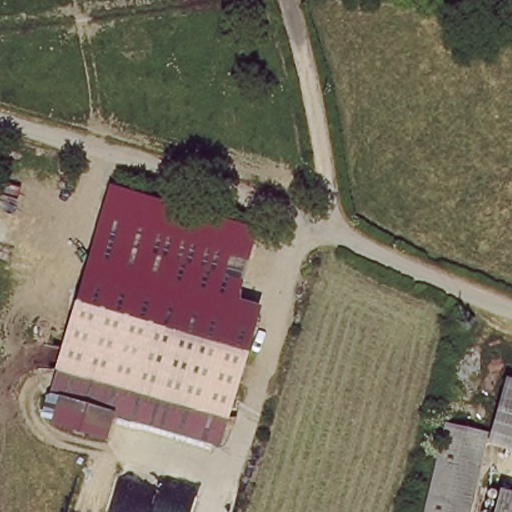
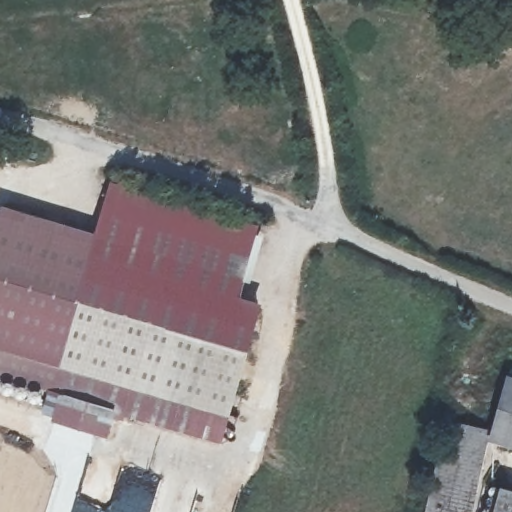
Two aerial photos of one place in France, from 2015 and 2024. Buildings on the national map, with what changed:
unchanged [(113,182),(260,227),(246,279),(98,237),(113,182)]
new [(0,376),(0,209),(0,207),(98,237),(50,392),(0,376)]
unchanged [(60,396),(50,392),(98,237),(246,279),(240,301),(259,306),(220,443),(111,413),(103,438),(51,422),(60,396)]
unchanged [(492,433),(505,380),(512,382),(512,443),(490,438),(492,433)]
unchanged [(425,512),(449,422),(492,433),(490,438),(472,512),(425,512)]
unchanged [(512,494),(512,512),(492,512),(498,491),(512,494)]

